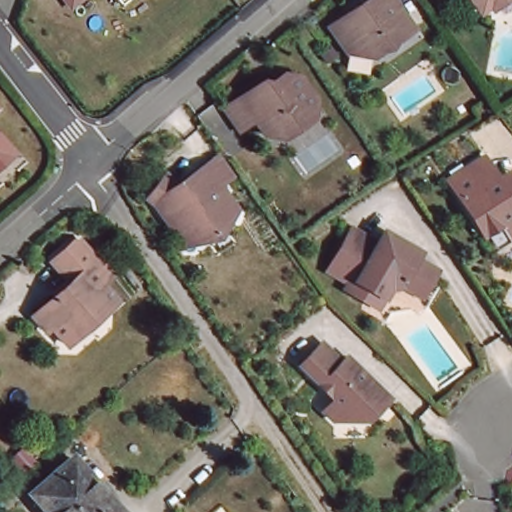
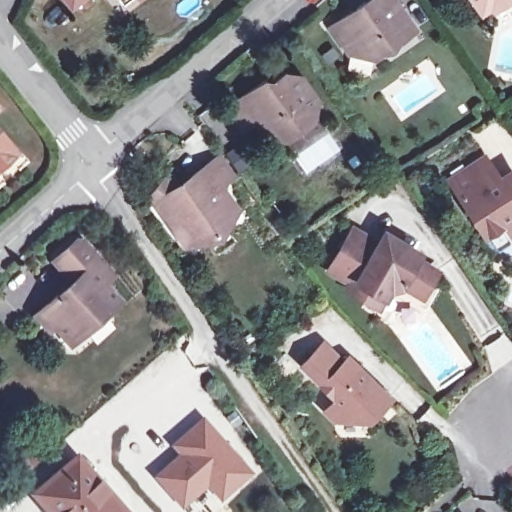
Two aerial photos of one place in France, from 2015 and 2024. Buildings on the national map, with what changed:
unchanged [(72,12),(62,0),(89,0),(72,12)]
unchanged [(124,7),(118,0),(136,0),(124,7)]
unchanged [(407,29),(374,52),(350,48),(331,21),(361,0),(399,0),(404,6),(415,23),(407,29)]
unchanged [(482,12),(473,0),(498,0),(482,12)]
unchanged [(266,85),(269,89),(282,80),(301,80),(317,104),(307,112),(314,123),(293,138),(285,143),(266,140),(255,124),(245,131),(240,135),(229,110),(241,103),(266,85)]
unchanged [(0,117),(0,110),(4,114),(0,117)]
unchanged [(0,177),(0,138),(19,159),(0,177)]
unchanged [(219,187),(225,188),(234,202),(221,211),(226,217),(202,233),(196,224),(180,234),(151,194),(164,168),(177,175),(184,178),(189,174),(189,173),(188,172),(188,170),(189,169),(189,167),(190,166),(191,165),(204,156),(216,147),(230,167),(218,175),(221,179),(219,187)]
unchanged [(494,241),(485,228),(482,230),(445,173),(479,151),(494,174),(507,166),(512,173),(512,226),(504,231),(497,220),(494,222),(502,235),(494,241)]
unchanged [(372,294),(338,275),(342,269),(321,256),(344,216),(384,239),(391,227),(425,247),(421,253),(442,265),(428,290),(407,278),(396,281),(390,291),(384,301),(372,294)]
unchanged [(67,344),(55,330),(50,334),(36,318),(75,285),(56,264),(77,245),(85,246),(102,262),(101,263),(116,280),(107,288),(121,304),(90,332),(71,348),(67,344)]
unchanged [(333,398),(299,366),(320,344),(340,363),(345,358),(366,378),(362,382),(366,385),(370,382),(387,399),(366,421),(332,421),(322,410),(333,398)]
new [(177,453),(169,444),(202,416),(252,471),(220,500),(206,485),(181,507),(152,475),(177,453)]
unchanged [(74,457),(121,512),(50,512),(32,491),(74,457)]

